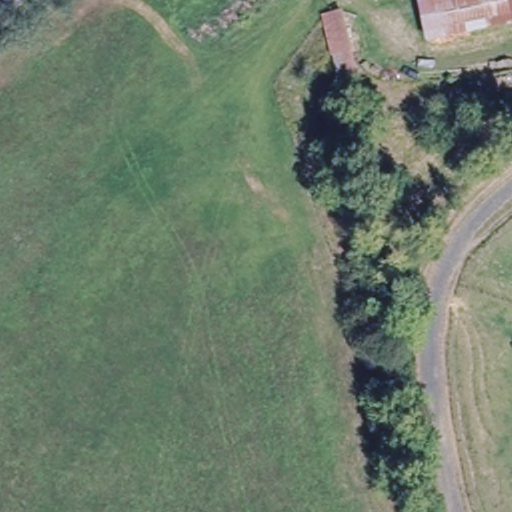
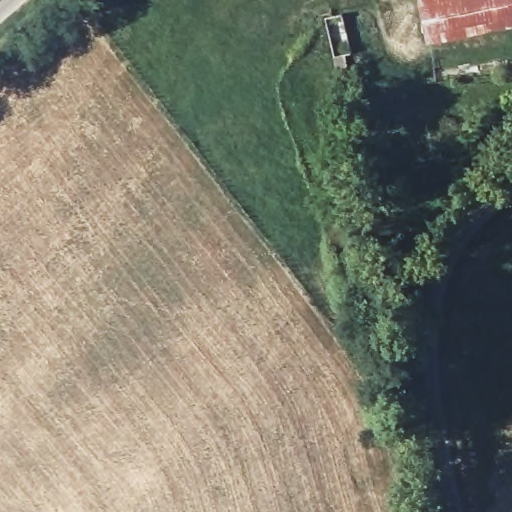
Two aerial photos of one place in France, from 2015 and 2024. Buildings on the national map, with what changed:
unchanged [(430,43),(421,0),(484,0),(489,32),(430,43)]
unchanged [(484,0),(512,0),(512,27),(489,32),(484,0)]
unchanged [(345,11),(359,76),(340,80),(324,15),(345,11)]

